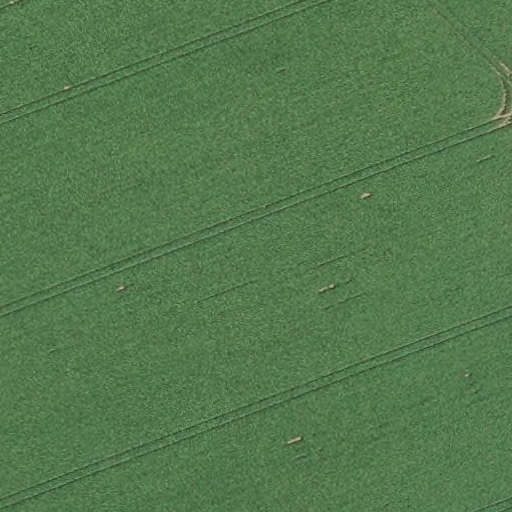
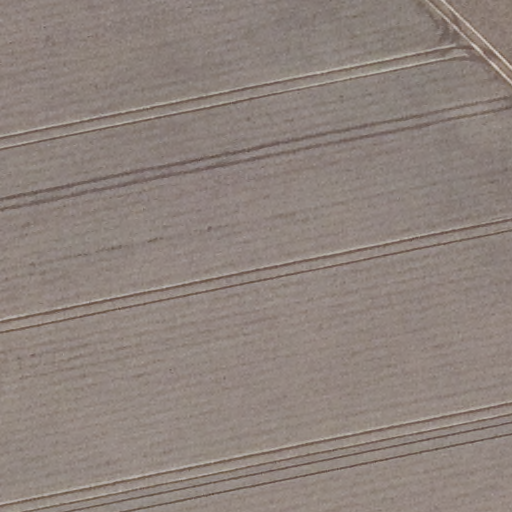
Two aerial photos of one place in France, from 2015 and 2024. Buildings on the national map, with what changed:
[]

